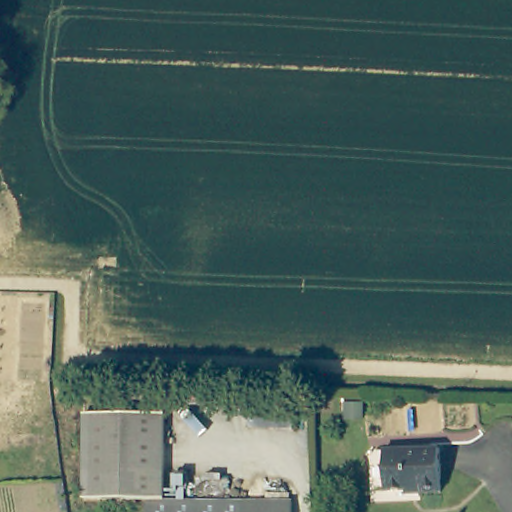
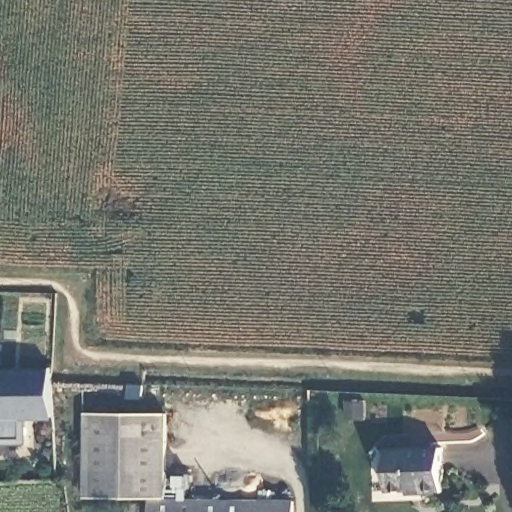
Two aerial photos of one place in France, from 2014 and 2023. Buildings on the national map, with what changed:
new [(51,369),(54,419),(27,419),(28,444),(0,444),(0,370),(51,369)]
unchanged [(82,500),(83,467),(83,455),(84,416),(150,417),(149,457),(149,468),(148,502),(82,500)]
unchanged [(426,500),(424,493),(391,496),(389,477),(388,469),(387,454),(443,450),(444,471),(445,478),(437,478),(437,498),(426,500)]
unchanged [(148,502),(287,505),(287,512),(148,512),(148,502)]

